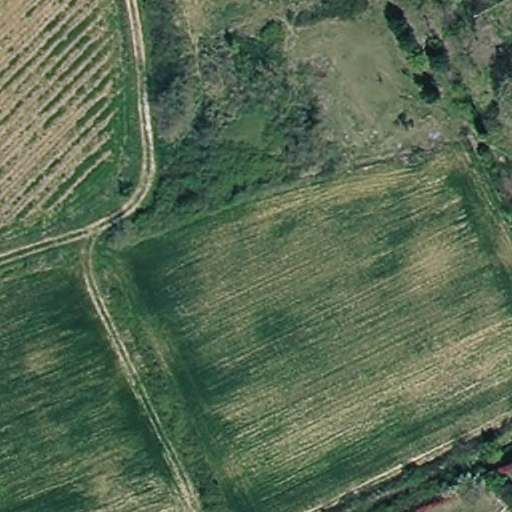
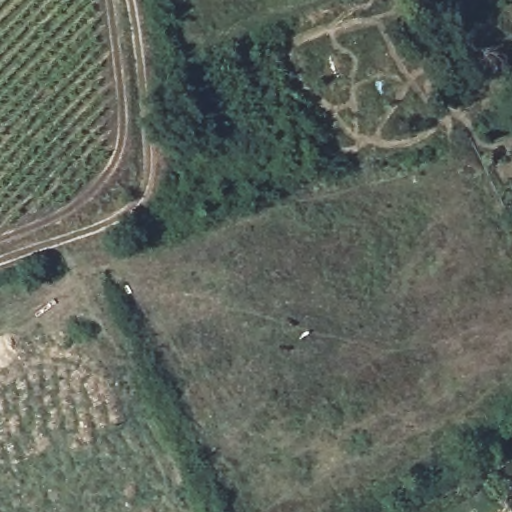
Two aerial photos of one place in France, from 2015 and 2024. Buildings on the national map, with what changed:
[]

